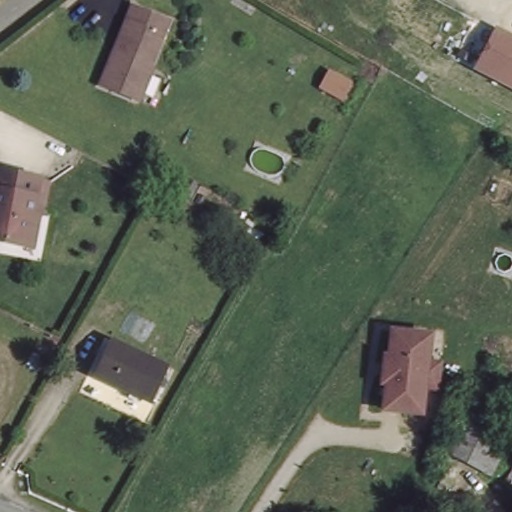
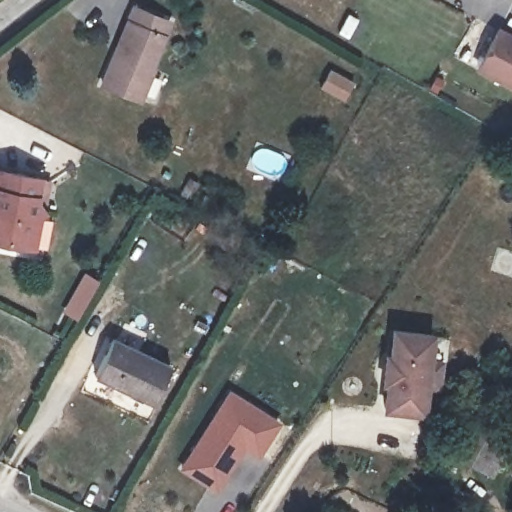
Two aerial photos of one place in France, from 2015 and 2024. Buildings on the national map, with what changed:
unchanged [(137,100),(130,97),(98,84),(128,8),(165,23),(147,68),(149,69),(137,100)]
unchanged [(512,38),(512,84),(479,66),(498,30),(512,38)]
unchanged [(189,177),(182,190),(172,185),(179,172),(189,177)]
unchanged [(19,244),(18,247),(0,244),(0,239),(0,176),(37,183),(32,203),(40,214),(37,216),(34,219),(33,223),(28,245),(19,244)]
unchanged [(435,382),(422,381),(420,407),(386,404),(388,379),(385,379),(387,352),(391,352),(393,327),(427,329),(425,357),(437,358),(435,382)]
unchanged [(98,374),(117,335),(172,362),(153,401),(98,374)]
new [(258,457),(245,449),(217,494),(179,468),(229,389),(280,422),(258,457)]
unchanged [(512,434),(512,436),(492,481),(444,457),(465,412),(512,434)]

